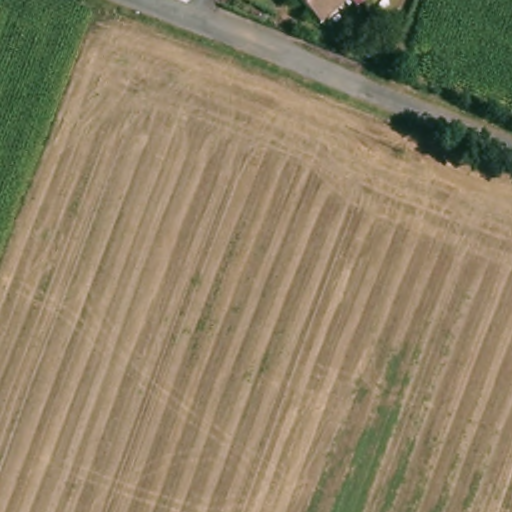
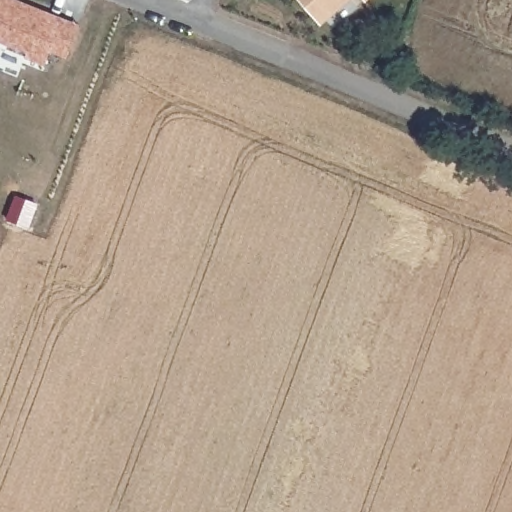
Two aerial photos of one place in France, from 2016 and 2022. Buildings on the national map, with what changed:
new [(67,59),(48,52),(43,66),(24,58),(25,52),(0,43),(0,0),(17,0),(79,24),(67,59)]
unchanged [(323,30),(297,0),(358,0),(323,30)]
unchanged [(367,6),(361,0),(375,0),(367,6)]

